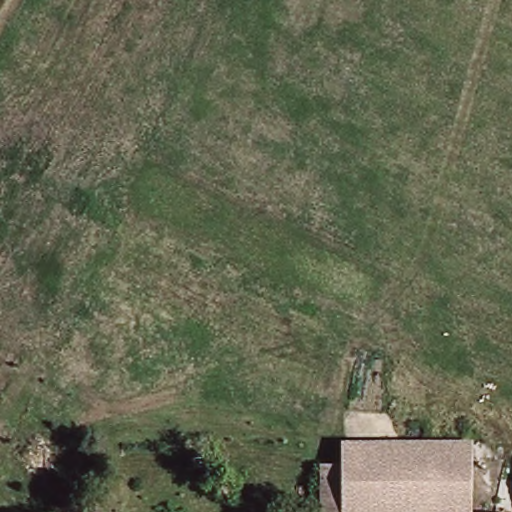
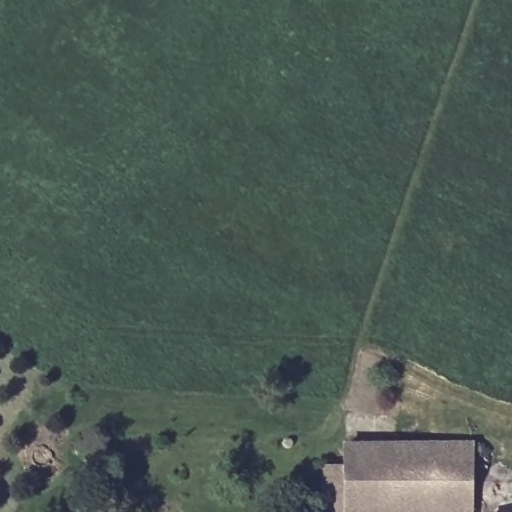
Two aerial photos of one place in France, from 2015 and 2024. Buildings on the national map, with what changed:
unchanged [(343,439),(478,444),(477,512),(323,512),(323,465),(342,465),(343,439)]

